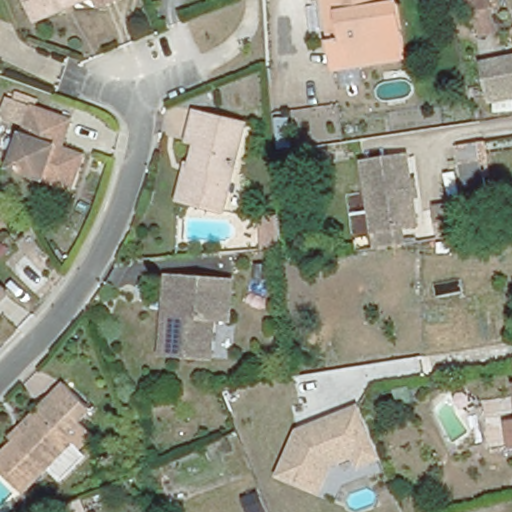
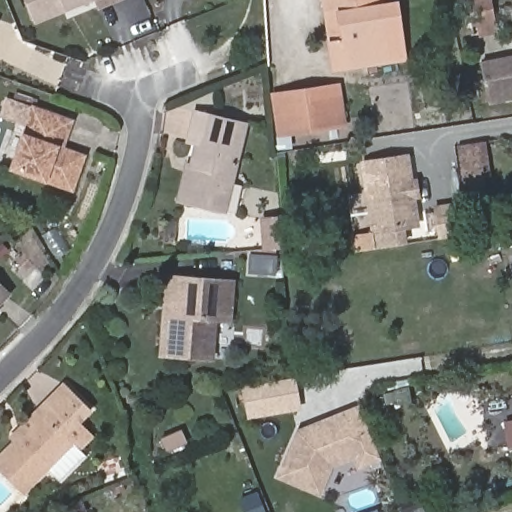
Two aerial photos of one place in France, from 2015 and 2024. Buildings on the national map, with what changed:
unchanged [(35,21),(26,0),(84,0),(35,21)]
unchanged [(95,6),(94,0),(110,0),(95,6)]
unchanged [(333,70),(322,0),(337,0),(347,67),(333,70)]
unchanged [(347,67),(337,0),(384,0),(385,10),(396,9),(400,33),(405,57),(347,67)]
unchanged [(489,24),(483,25),(468,27),(465,14),(462,0),(501,0),(503,11),(505,22),(489,24)]
unchanged [(490,102),(481,64),(512,56),(512,98),(490,102)]
new [(338,84),(345,124),(275,135),(272,95),(338,84)]
unchanged [(11,171),(28,126),(7,117),(1,115),(6,101),(12,103),(16,95),(37,102),(34,111),(67,124),(62,140),(59,151),(69,154),(57,187),(11,171)]
unchanged [(189,163),(194,164),(200,141),(190,139),(198,109),(248,122),(226,209),(189,198),(180,196),(189,163)]
unchanged [(394,227),(398,245),(372,249),(359,161),(401,155),(405,179),(413,177),(416,198),(408,199),(412,225),(394,227)]
unchanged [(493,228),(470,232),(467,210),(490,207),(493,228)]
unchanged [(265,217),(280,216),(283,247),(267,249),(265,217)]
unchanged [(231,312),(215,311),(212,351),(169,347),(171,308),(166,307),(170,270),(182,271),(234,275),(231,312)]
new [(248,418),(243,387),(297,377),(303,410),(248,418)]
unchanged [(75,425),(89,437),(76,451),(83,457),(57,485),(44,472),(20,497),(0,477),(0,462),(14,448),(9,443),(37,415),(63,388),(86,412),(75,425)]
unchanged [(380,455),(359,463),(355,453),(330,463),(318,491),(280,474),(298,430),(360,406),(380,455)]
unchanged [(80,512),(52,512),(75,502),(80,512)]

